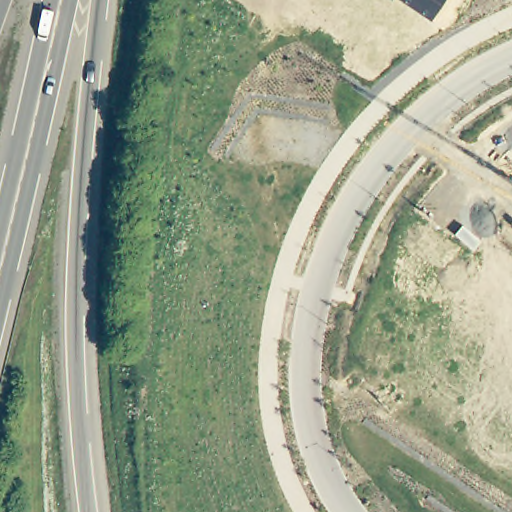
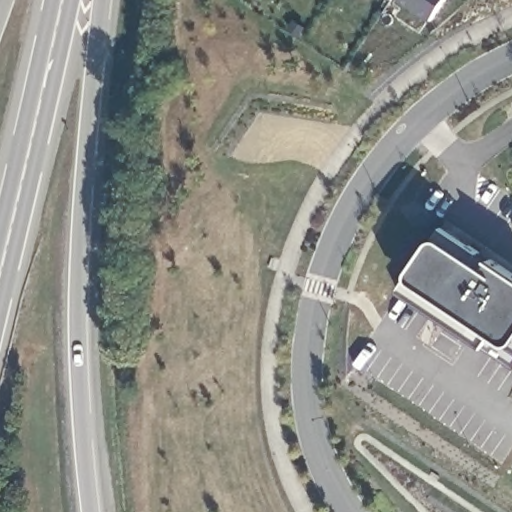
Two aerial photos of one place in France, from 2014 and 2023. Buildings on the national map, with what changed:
unchanged [(431,20),(401,0),(444,0),(431,20)]
new [(486,344),(404,290),(414,278),(412,272),(432,239),(441,238),(445,228),(483,251),(478,260),(485,264),(491,257),(512,272),(512,364),(486,344)]

